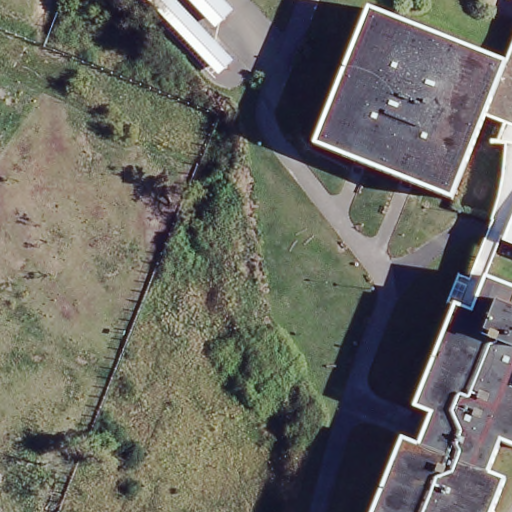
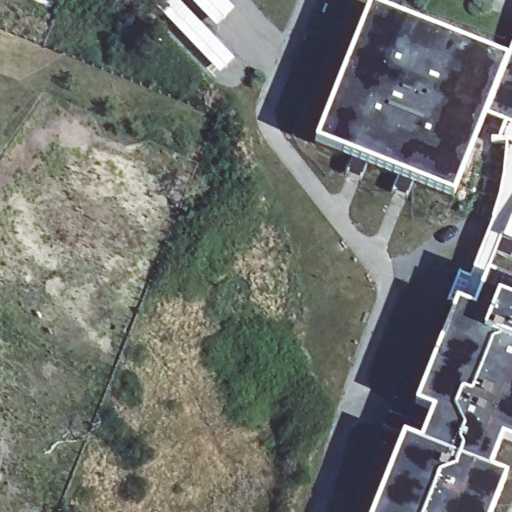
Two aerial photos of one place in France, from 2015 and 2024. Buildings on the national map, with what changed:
unchanged [(218,72),(150,0),(176,0),(232,59),(218,72)]
unchanged [(217,29),(189,0),(222,0),(235,13),(217,29)]
unchanged [(447,194),(315,139),(368,3),(502,58),(512,35),(512,123),(500,118),(482,111),(447,194)]
unchanged [(485,274),(512,286),(512,438),(509,445),(495,440),(482,470),(495,476),(480,512),(368,512),(400,436),(412,442),(426,410),(412,404),(453,302),(445,300),(457,271),(468,275),(485,226),(491,205),(503,139),(488,138),(488,135),(495,135),(500,118),(512,123),(512,239),(500,233),(485,274)]

